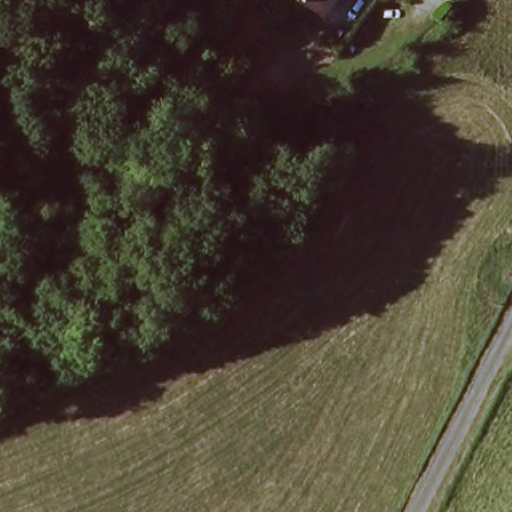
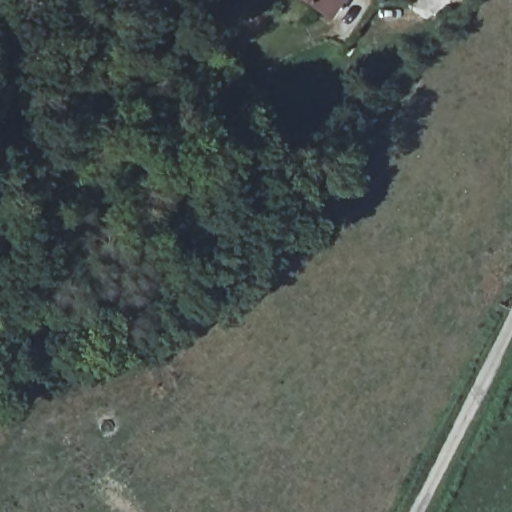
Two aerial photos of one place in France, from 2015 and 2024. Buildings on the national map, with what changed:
unchanged [(314,12),(298,0),(324,0),(314,12)]

